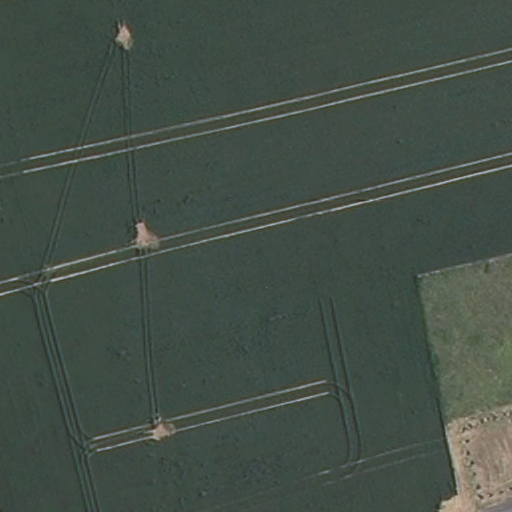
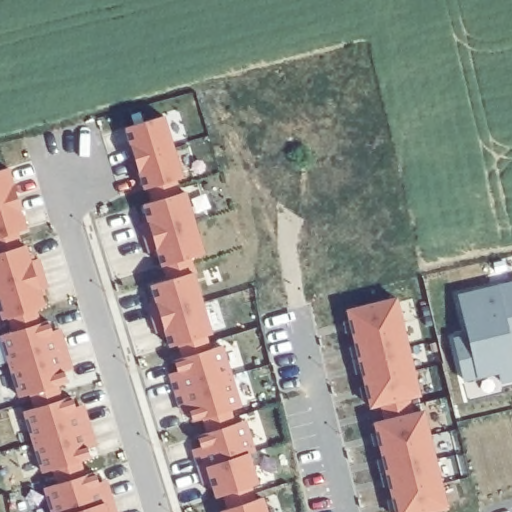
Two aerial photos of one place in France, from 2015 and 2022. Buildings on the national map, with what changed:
new [(164,116),(182,178),(177,179),(181,193),(186,191),(205,255),(190,259),(195,274),(192,272),(212,335),(206,336),(211,349),(223,344),(242,407),(231,410),(235,425),(246,420),(256,451),(248,453),(258,485),(253,486),(257,500),(263,498),(268,512),(223,512),(228,511),(224,496),(213,499),(210,480),(202,484),(192,449),(200,445),(197,438),(196,436),(207,433),(205,419),(191,422),(190,410),(180,413),(169,374),(176,371),(175,364),(173,360),(181,357),(178,345),(167,347),(163,329),(155,333),(147,305),(154,301),(150,286),(167,281),(165,265),(160,266),(156,250),(147,253),(140,224),(147,219),(142,206),(153,202),(150,188),(143,190),(125,129),(164,116)]
new [(8,168),(27,230),(18,233),(22,247),(26,245),(30,262),(39,259),(49,293),(40,292),(45,308),(36,311),(41,323),(48,320),(50,326),(49,325),(51,333),(61,329),(73,369),(63,371),(67,382),(58,386),(62,398),(72,396),(73,400),(72,401),(75,409),(85,405),(96,445),(86,447),(90,458),(80,462),(85,475),(95,472),(97,477),(95,477),(98,485),(107,481),(117,512),(50,512),(43,489),(57,485),(53,470),(41,473),(23,412),(34,409),(30,395),(17,398),(0,337),(11,333),(10,318),(0,320),(0,318),(0,171),(8,168)]
new [(512,383),(500,385),(499,376),(463,384),(455,339),(467,337),(458,296),(512,283),(512,383)]
new [(397,297),(421,397),(410,400),(415,412),(425,409),(448,510),(437,512),(395,512),(373,422),(384,420),(382,406),(369,409),(346,310),(397,297)]

